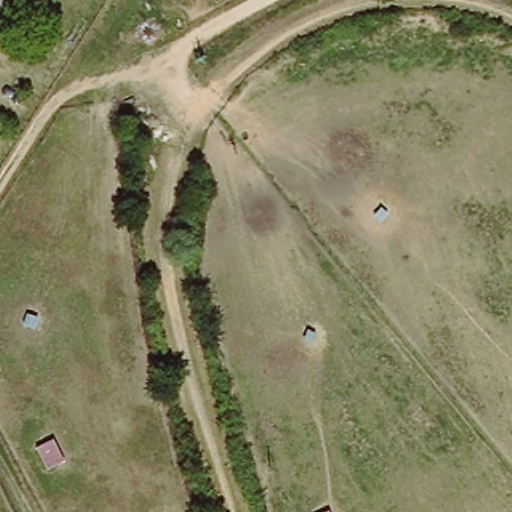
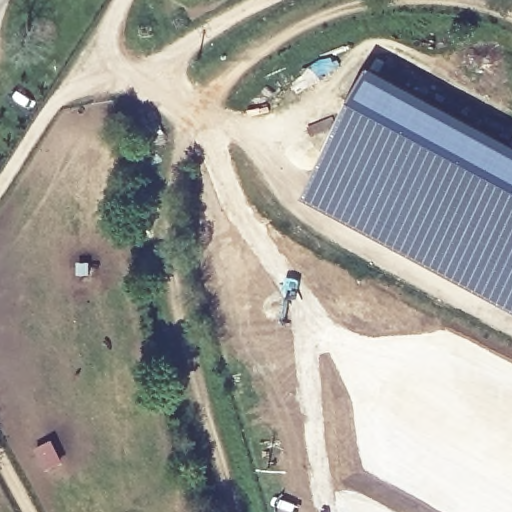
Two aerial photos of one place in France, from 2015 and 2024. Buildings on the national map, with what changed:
new [(512,141),(512,309),(299,197),(370,66),(512,141)]

